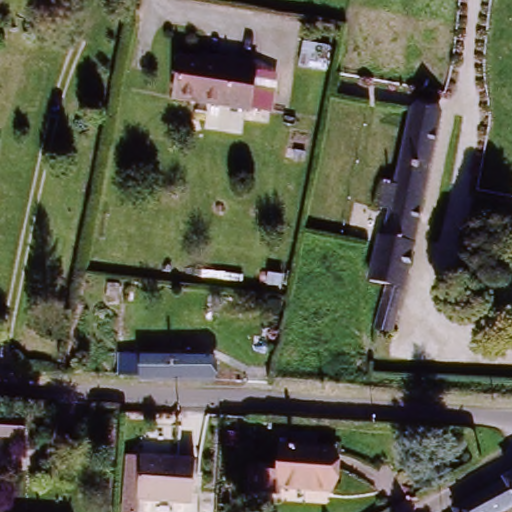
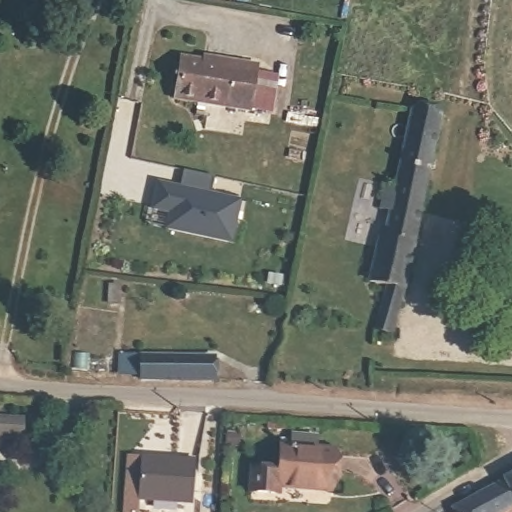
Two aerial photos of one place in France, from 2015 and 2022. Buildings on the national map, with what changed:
unchanged [(229,1),(220,0),(229,0),(229,1)]
unchanged [(177,101),(184,58),(242,67),(243,63),(260,66),(252,112),(177,101)]
unchanged [(397,182),(414,108),(445,115),(417,244),(399,330),(380,326),(388,281),(375,278),(382,242),(390,209),(382,207),(388,180),(397,182)]
new [(179,186),(182,170),(214,175),(210,193),(242,200),(234,243),(164,229),(168,213),(151,210),(155,181),(179,186)]
unchanged [(139,373),(119,373),(120,353),(141,356),(222,359),(222,383),(152,380),(151,374),(139,373)]
unchanged [(25,445),(0,445),(0,419),(27,419),(25,445)]
unchanged [(257,491),(260,466),(284,468),(285,446),(296,447),(297,432),(321,434),(320,449),(340,450),(337,492),(282,488),(281,493),(257,491)]
unchanged [(142,456),(197,460),(195,502),(140,498),(142,456)]
unchanged [(512,480),(512,511),(511,512),(456,512),(455,511),(512,480)]

